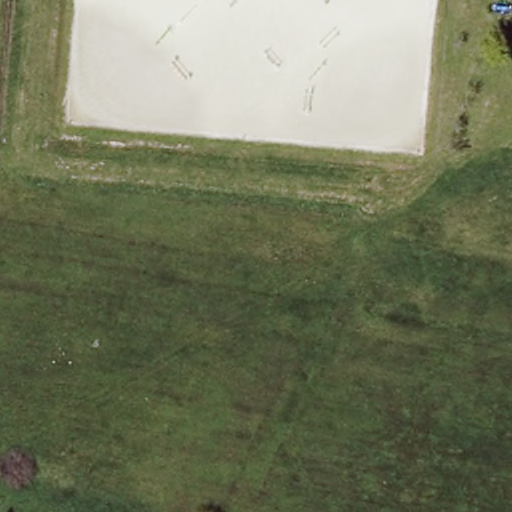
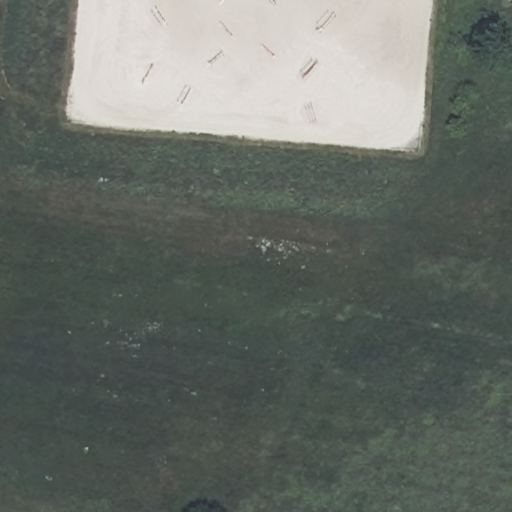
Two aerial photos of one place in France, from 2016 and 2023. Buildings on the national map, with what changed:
[]

